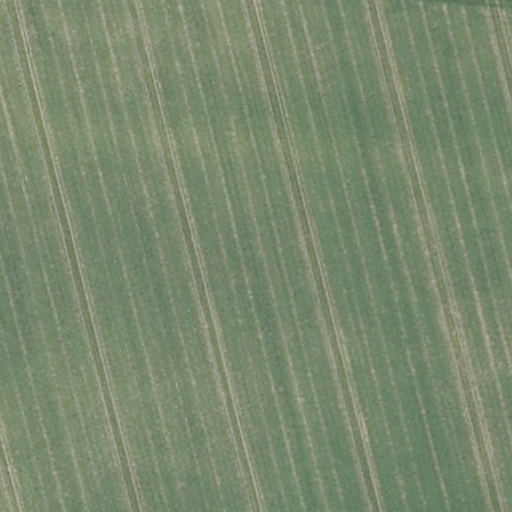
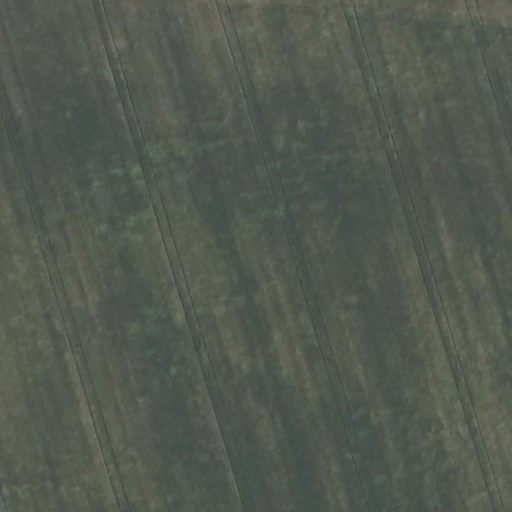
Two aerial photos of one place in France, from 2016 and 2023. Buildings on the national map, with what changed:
[]

